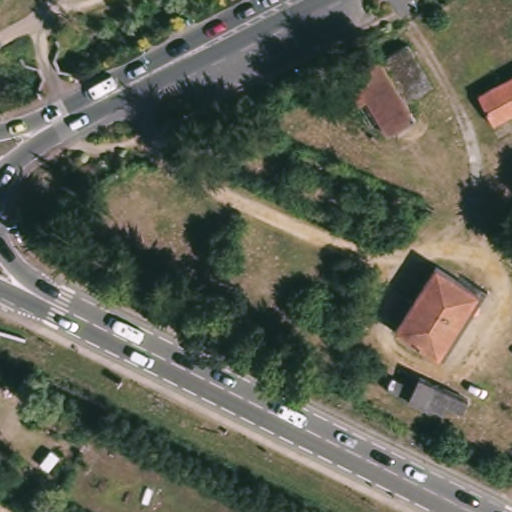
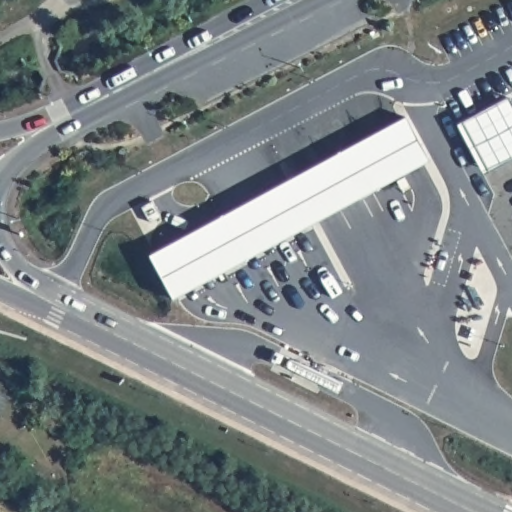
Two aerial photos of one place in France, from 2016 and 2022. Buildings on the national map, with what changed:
demolished [(401,102),(411,118),(384,135),(383,135),(382,134),(361,98),(343,109),(326,80),(343,70),(345,72),(373,56),(374,58),(401,42),(428,86),(401,102)]
demolished [(489,125),(474,95),(512,74),(512,112),(489,125)]
new [(146,254),(404,116),(428,160),(171,297),(146,254)]
demolished [(453,284),(456,278),(483,295),(479,303),(473,299),(433,362),(390,335),(432,270),(453,284)]
demolished [(458,415),(444,408),(440,416),(426,410),(425,413),(382,394),(388,382),(410,392),(415,381),(463,404),(458,415)]
unchanged [(20,478),(0,469),(0,457),(25,469),(24,470),(20,478)]

